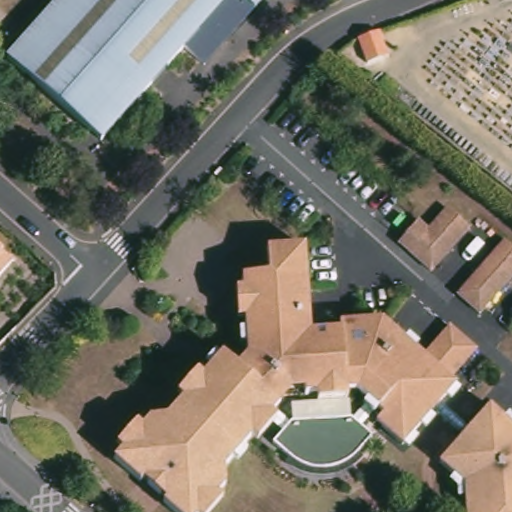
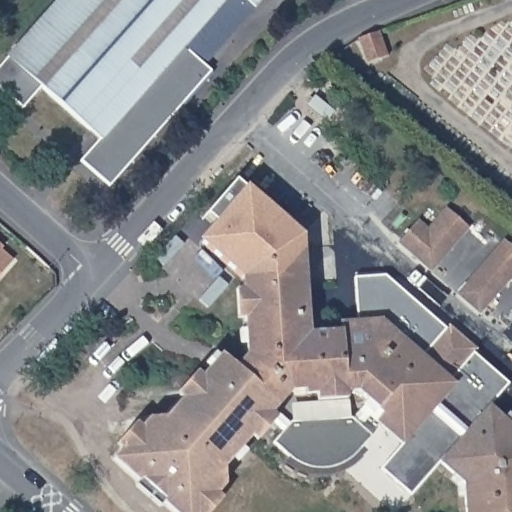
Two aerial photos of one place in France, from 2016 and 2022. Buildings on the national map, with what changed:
unchanged [(199,66),(180,49),(97,141),(2,59),(54,0),(259,0),(199,66)]
unchanged [(378,32),(386,56),(367,64),(359,40),(378,32)]
new [(201,239),(215,221),(207,214),(236,180),(244,187),(246,185),(298,230),(299,247),(277,248),(279,275),(270,275),(245,276),(201,239)]
unchanged [(426,270),(395,243),(415,221),(424,229),(442,209),(463,227),(426,270)]
unchanged [(475,313),(452,295),(500,240),(512,250),(512,270),(475,313)]
unchanged [(408,443),(382,420),(390,411),(367,390),(351,391),(351,400),(323,401),(323,395),(309,395),(309,385),(287,386),(252,428),(259,433),(229,467),(230,485),(206,512),(177,512),(165,502),(167,500),(145,481),(143,482),(116,460),(153,417),(167,417),(207,373),(225,354),(231,358),(239,365),(249,355),(245,276),(270,275),(279,275),(277,248),(299,247),(305,332),(351,329),(350,321),(386,319),(431,358),(435,355),(434,345),(452,325),(481,349),(455,380),(460,384),(442,404),(437,411),(408,443)]
unchanged [(0,271),(0,252),(9,260),(0,271)]
unchanged [(379,436),(366,455),(360,460),(355,462),(347,466),(340,468),(335,470),(328,470),(321,469),(314,467),(309,465),(304,463),(300,461),(297,458),(279,442),(296,423),(357,420),(379,436)]

